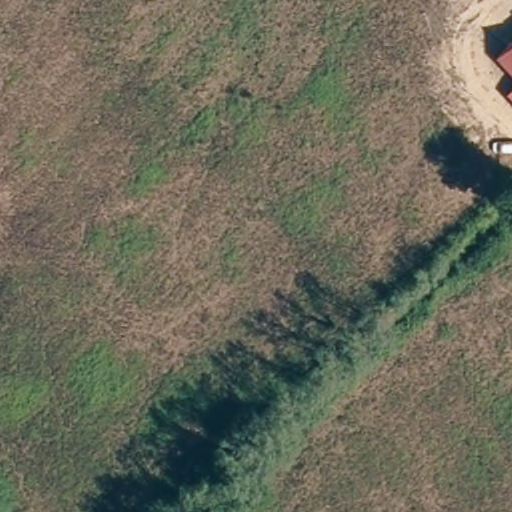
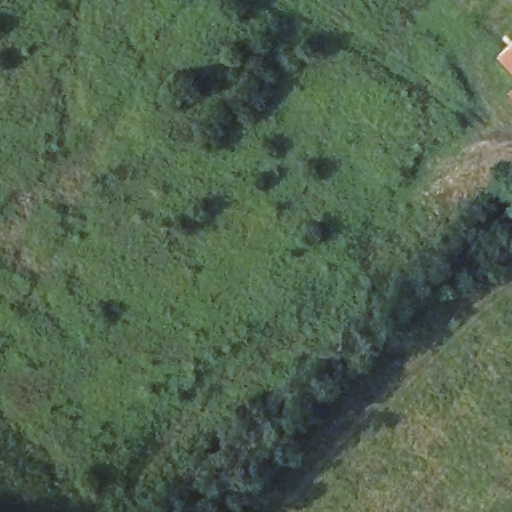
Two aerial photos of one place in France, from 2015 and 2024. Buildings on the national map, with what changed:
unchanged [(512,45),(511,44),(512,43),(512,45)]
unchanged [(512,81),(512,89),(508,84),(512,81)]

